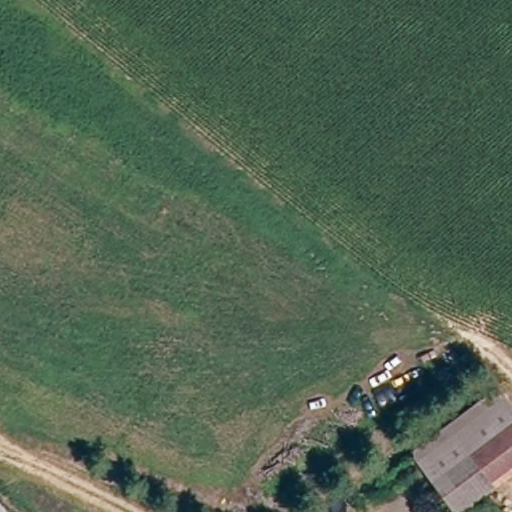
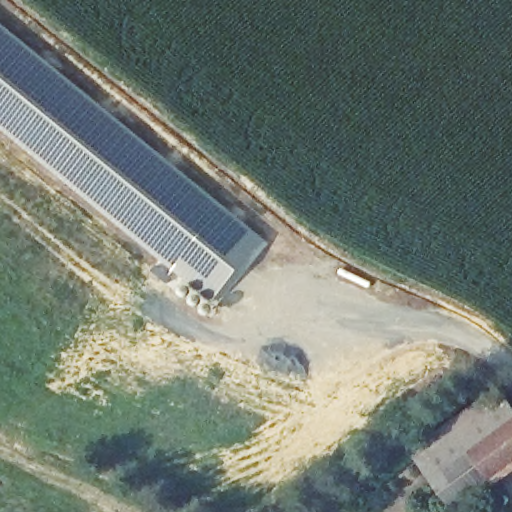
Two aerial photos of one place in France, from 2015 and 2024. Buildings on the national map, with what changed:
new [(210,305),(0,132),(0,24),(263,240),(210,305)]
unchanged [(434,482),(413,457),(496,391),(512,406),(512,420),(434,482)]
unchanged [(471,460),(512,427),(512,465),(489,483),(471,460)]
unchanged [(475,494),(478,498),(467,507),(461,512),(458,512),(438,487),(471,460),(489,483),(475,494)]
demolished [(0,512),(0,500),(12,512),(0,512)]

